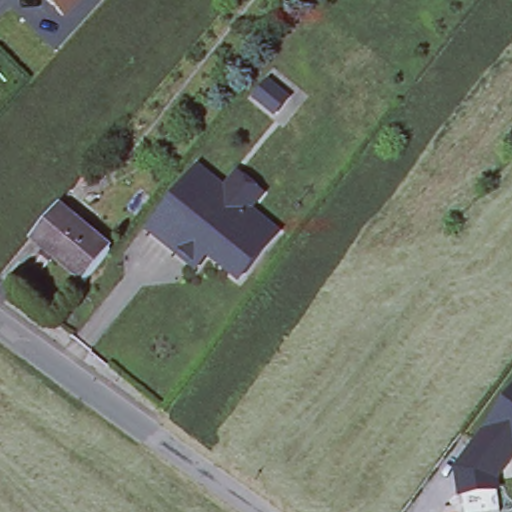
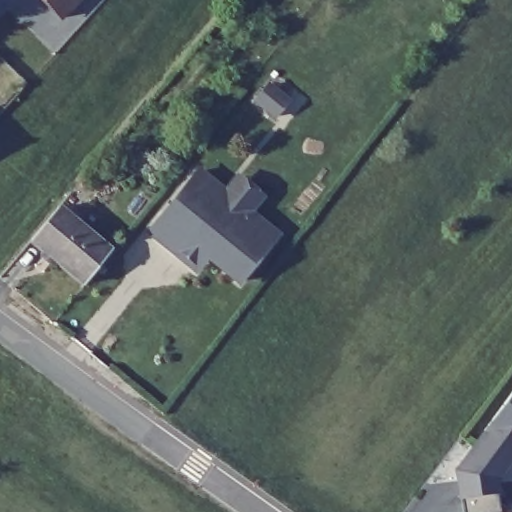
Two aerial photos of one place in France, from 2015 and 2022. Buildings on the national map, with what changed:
unchanged [(44,5),(38,0),(83,0),(62,22),(44,5)]
unchanged [(269,85),(288,100),(275,116),(256,100),(269,85)]
unchanged [(150,231),(199,171),(225,192),(238,177),(262,196),(249,212),(277,235),(240,281),(208,256),(197,269),(178,254),(150,231)]
unchanged [(80,226),(53,258),(30,239),(57,207),(80,226)]
unchanged [(110,251),(84,283),(53,258),(80,226),(110,251)]
unchanged [(459,477),(467,476),(465,459),(475,458),(474,446),(512,394),(512,449),(499,451),(493,459),(497,489),(462,494),(459,477)]

